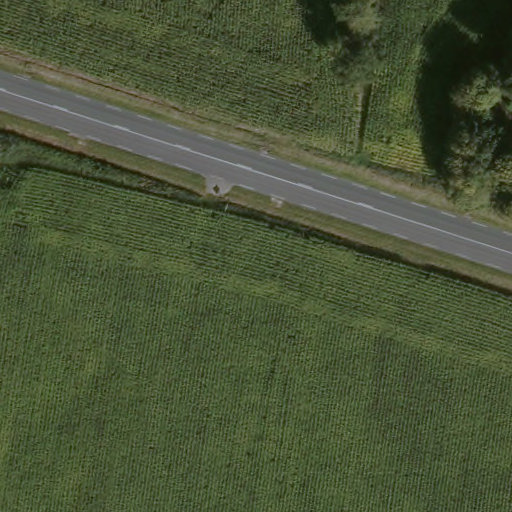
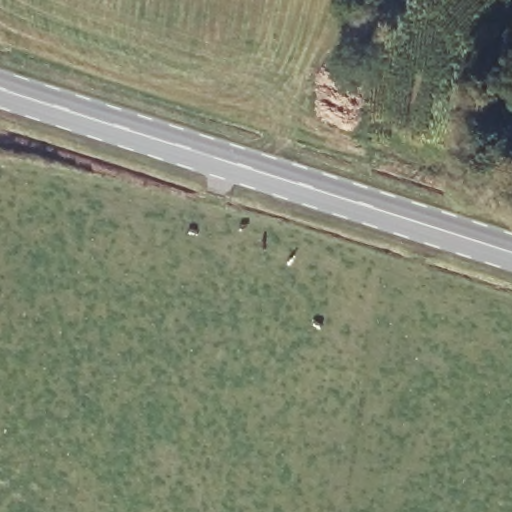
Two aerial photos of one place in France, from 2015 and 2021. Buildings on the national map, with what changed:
[]

